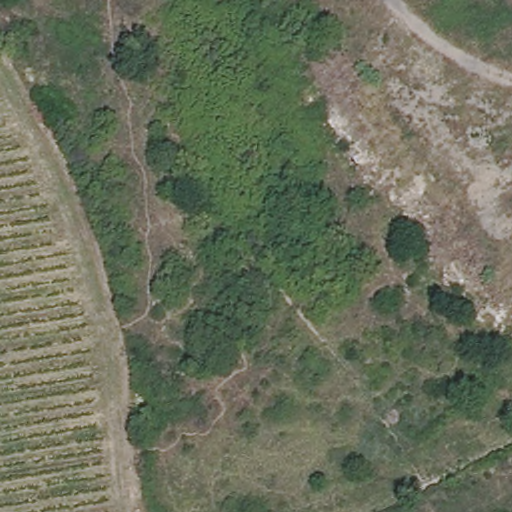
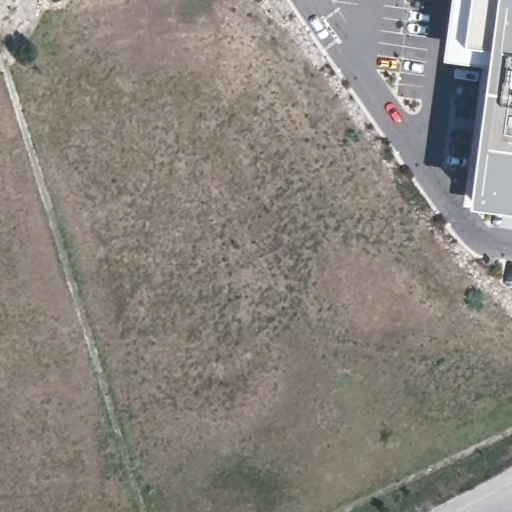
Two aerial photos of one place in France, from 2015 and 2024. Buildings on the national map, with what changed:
new [(462,204),(480,65),(439,61),(448,0),(512,0),(512,211),(462,204)]

